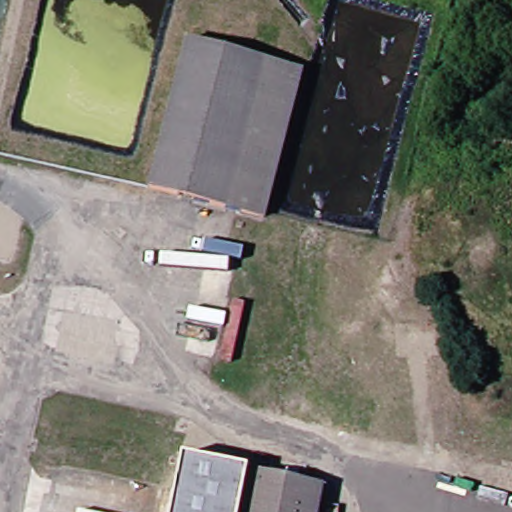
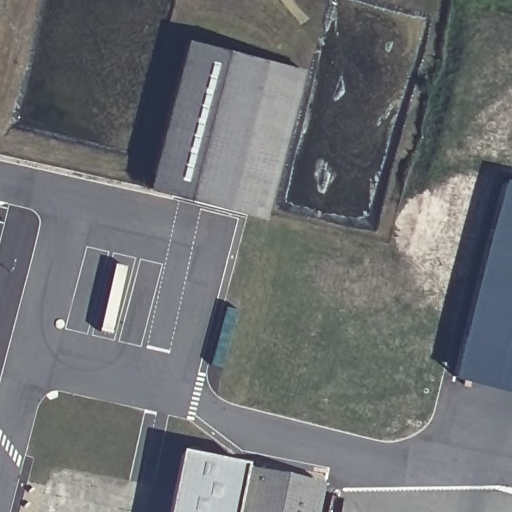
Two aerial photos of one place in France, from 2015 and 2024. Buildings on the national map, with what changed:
unchanged [(288,67),(285,85),(257,214),(147,198),(176,45),(262,62),(288,67)]
new [(512,181),(512,392),(453,377),(505,179),(512,181)]
unchanged [(311,512),(166,512),(181,446),(320,476),(311,512)]

